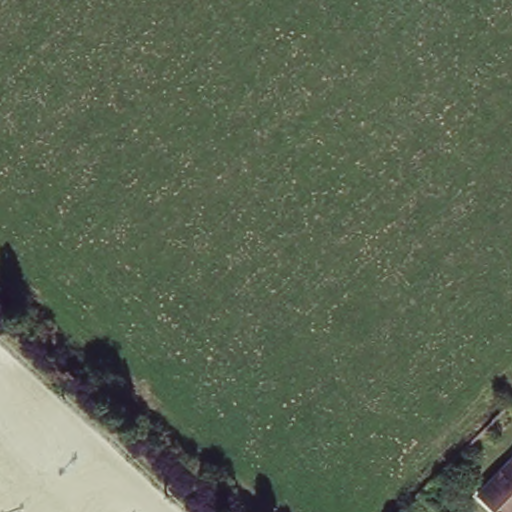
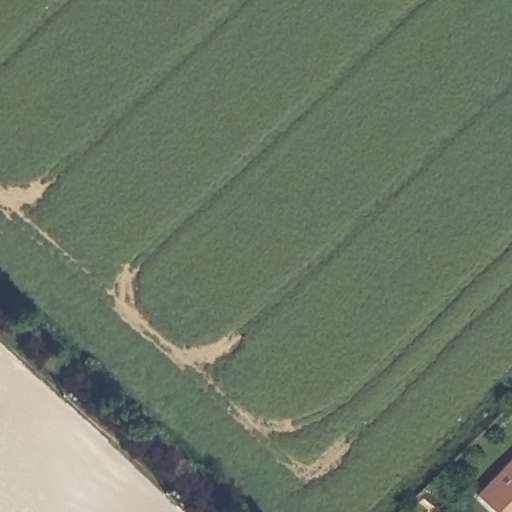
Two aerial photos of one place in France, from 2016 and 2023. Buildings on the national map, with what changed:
unchanged [(512,456),(512,512),(502,512),(478,490),(512,456)]

